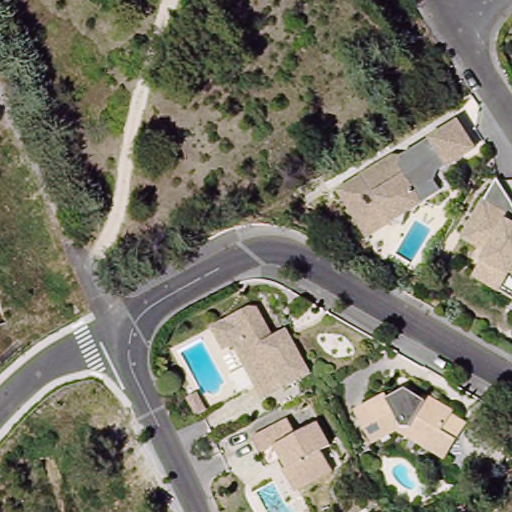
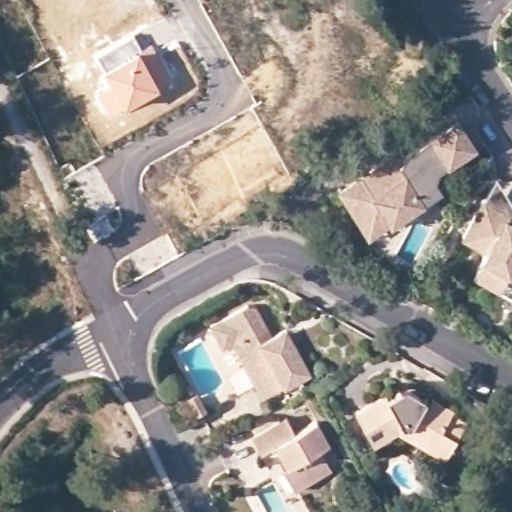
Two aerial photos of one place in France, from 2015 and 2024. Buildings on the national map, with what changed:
new [(103,70),(95,54),(133,32),(141,46),(152,41),(173,80),(109,114),(96,91),(109,83),(103,70)]
unchanged [(336,193),(341,191),(391,158),(399,159),(456,123),(473,150),(438,172),(434,183),(439,193),(405,215),(402,228),(389,225),(366,240),(336,193)]
unchanged [(448,188),(439,193),(434,183),(437,173),(438,172),(448,188)]
unchanged [(511,272),(508,273),(498,291),(474,278),(484,260),(488,251),(464,238),(484,201),(496,179),(512,205),(512,274),(511,272)]
unchanged [(246,372),(231,346),(221,351),(209,329),(246,309),(253,310),(271,340),(285,332),(309,376),(284,390),(262,402),(246,372)]
unchanged [(201,391),(211,408),(201,413),(192,396),(201,391)]
unchanged [(446,460),(431,452),(397,432),(372,446),(354,414),(385,397),(387,400),(399,394),(409,393),(425,402),(427,399),(452,413),(441,433),(457,441),(446,460)]
unchanged [(294,432),(316,420),(329,443),(319,448),(331,468),(293,489),(270,446),(260,451),(251,436),(286,417),(294,432)]

